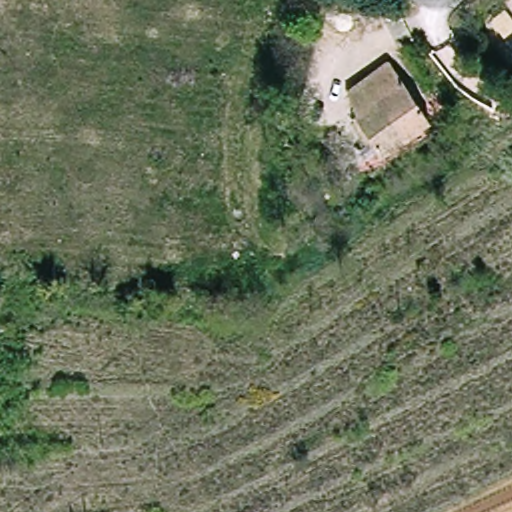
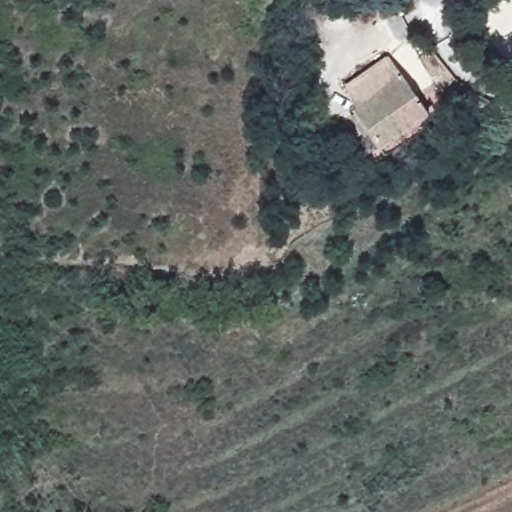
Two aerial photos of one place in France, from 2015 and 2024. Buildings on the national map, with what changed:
unchanged [(380,147),(353,111),(347,86),(390,58),(427,118),(380,147)]

